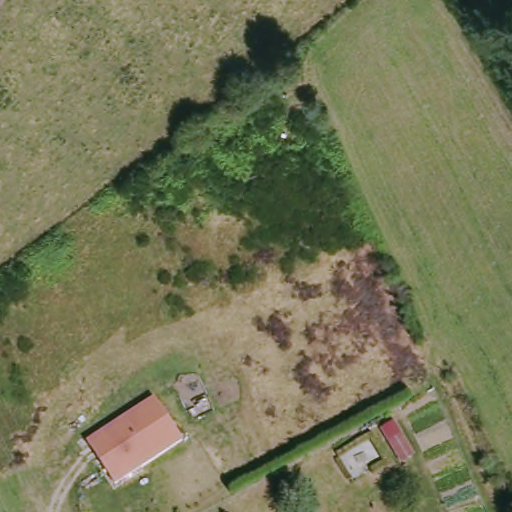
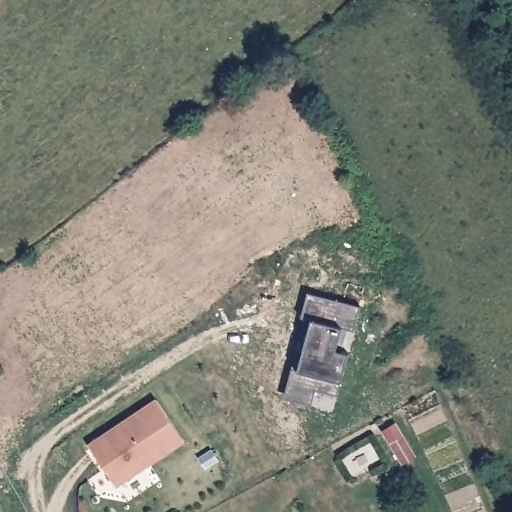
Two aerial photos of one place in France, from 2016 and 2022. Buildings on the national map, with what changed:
new [(306,308),(314,284),(366,301),(358,325),(346,321),(339,343),(351,347),(338,389),(316,382),(311,397),(289,391),(314,311),(306,308)]
unchanged [(184,438),(116,483),(90,443),(158,398),(184,438)]
unchanged [(395,418),(411,446),(399,452),(383,424),(395,418)]

